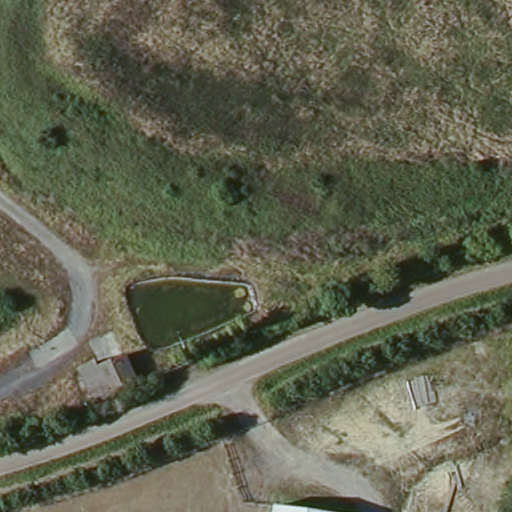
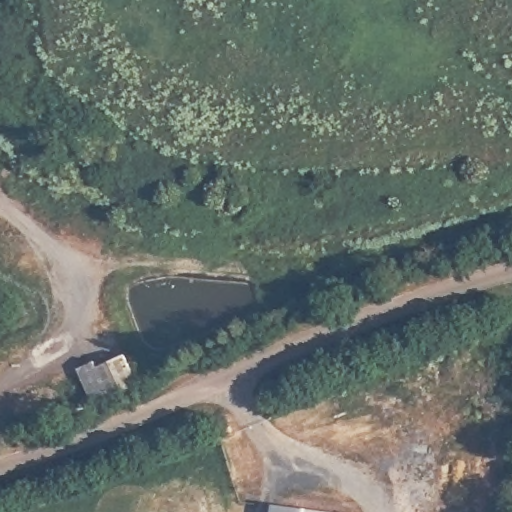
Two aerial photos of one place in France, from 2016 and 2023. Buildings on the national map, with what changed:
unchanged [(88,385),(78,362),(98,355),(102,365),(131,353),(143,383),(111,395),(96,401),(88,385)]
unchanged [(278,512),(279,506),(315,512),(278,512)]

